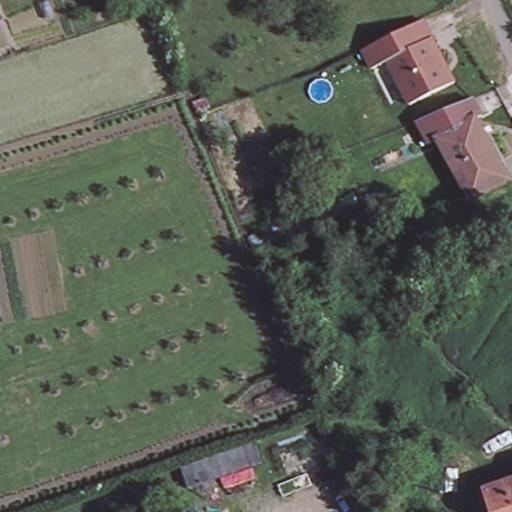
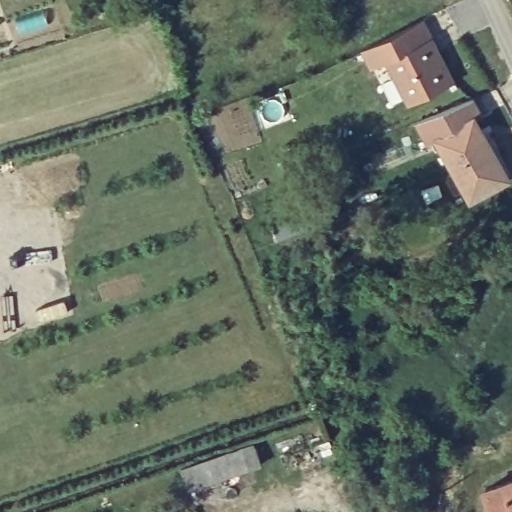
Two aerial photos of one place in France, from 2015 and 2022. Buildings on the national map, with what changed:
unchanged [(410,106),(389,62),(373,70),(364,51),(380,43),(425,21),(455,84),(410,106)]
unchanged [(472,96),(481,114),(475,117),(475,116),(437,136),(438,137),(430,142),(417,119),(472,96)]
unchanged [(437,136),(475,116),(475,117),(507,176),(470,196),(438,137),(437,136)]
unchanged [(512,410),(512,413),(511,410),(512,410)]
unchanged [(180,465),(237,446),(255,443),(261,463),(186,488),(180,465)]
unchanged [(485,487),(512,478),(512,512),(493,512),(485,487)]

